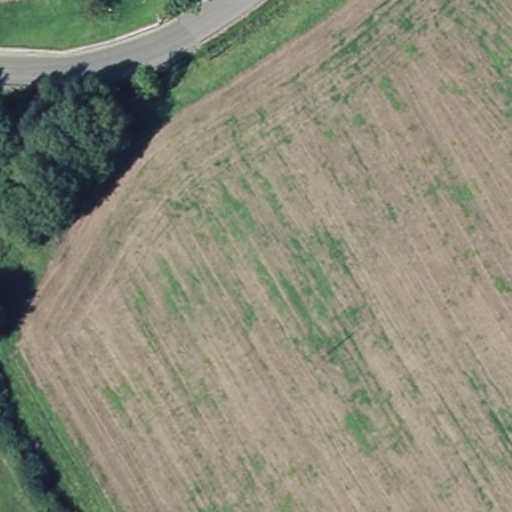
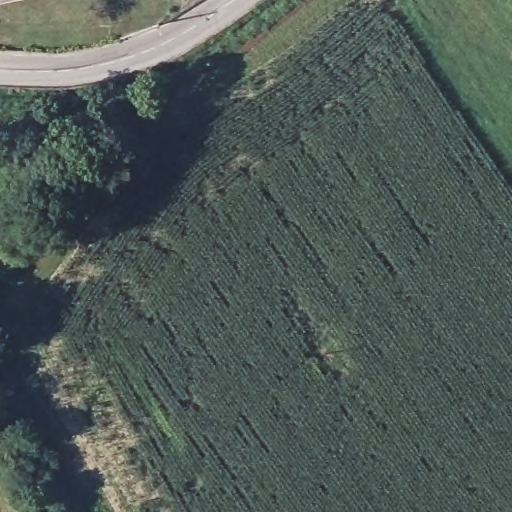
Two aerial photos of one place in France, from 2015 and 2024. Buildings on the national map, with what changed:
[]

